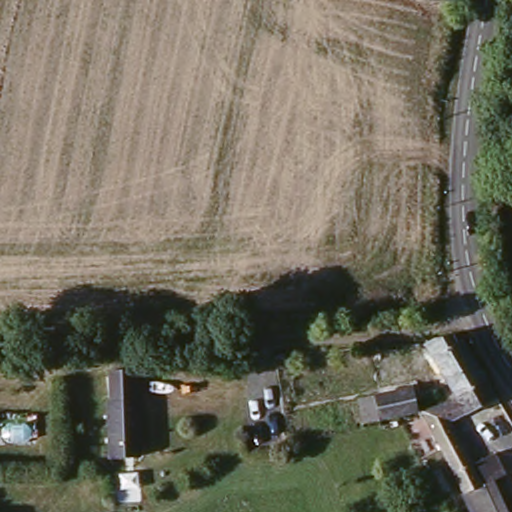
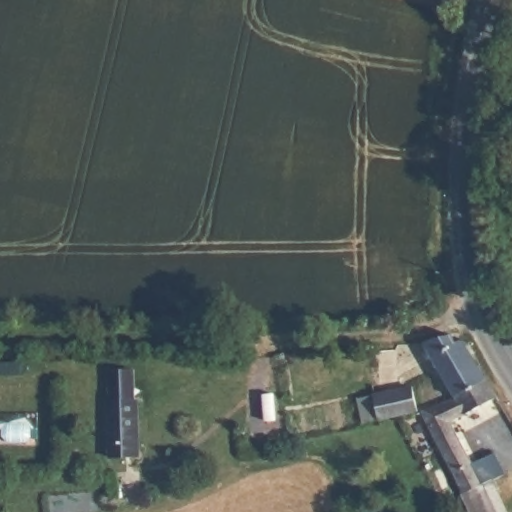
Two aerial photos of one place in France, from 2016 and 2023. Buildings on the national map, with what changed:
unchanged [(436,333),(443,333),(452,331),(456,337),(463,335),(486,376),(450,395),(426,338),(436,333)]
unchanged [(109,371),(137,372),(138,399),(112,400),(109,371)]
unchanged [(486,376),(496,393),(455,417),(475,458),(495,448),(505,470),(492,475),(462,488),(418,407),(450,395),(486,376)]
unchanged [(412,386),(418,407),(397,413),(380,418),(373,393),(412,386)]
unchanged [(105,400),(138,399),(140,455),(107,456),(105,400)]
unchanged [(462,488),(492,475),(508,512),(472,512),(462,488)]

